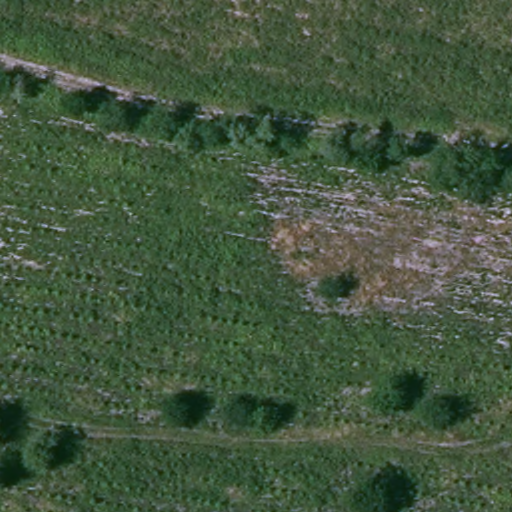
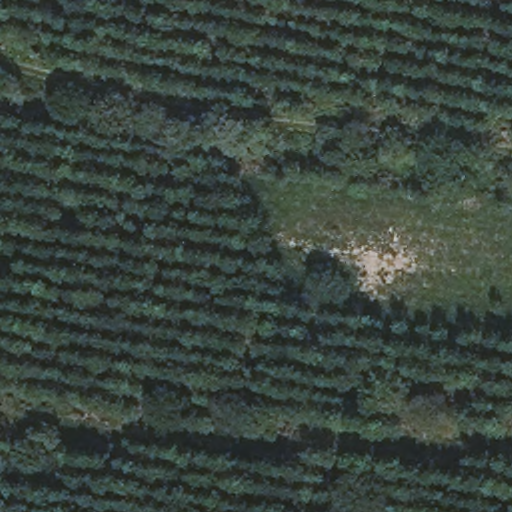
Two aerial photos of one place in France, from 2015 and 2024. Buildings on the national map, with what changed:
[]

